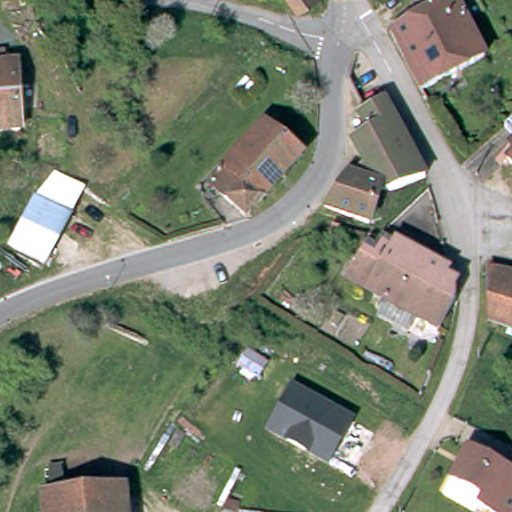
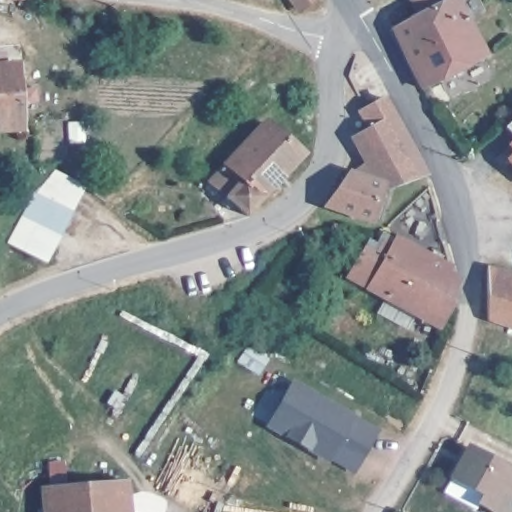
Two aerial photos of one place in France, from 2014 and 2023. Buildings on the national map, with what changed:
unchanged [(292,0),(319,0),(303,14),(292,0)]
unchanged [(417,87),(416,85),(420,82),(390,24),(417,10),(411,0),(435,0),(452,0),(468,29),(480,52),(417,87)]
unchanged [(4,49),(5,62),(12,62),(14,127),(0,128),(0,49),(4,49)]
unchanged [(380,174),(350,163),(360,157),(347,131),(360,125),(354,107),(380,95),(419,172),(390,177),(380,174)]
unchanged [(512,114),(512,137),(501,128),(512,114)]
unchanged [(297,147),(247,211),(212,182),(260,119),(297,147)]
unchanged [(512,138),(512,149),(507,145),(512,138)]
unchanged [(512,156),(512,162),(509,160),(512,156)]
unchanged [(382,211),(338,203),(350,163),(380,174),(382,211)]
unchanged [(4,252),(32,204),(70,224),(42,272),(4,252)]
unchanged [(403,314),(393,327),(366,309),(375,296),(345,277),(359,252),(365,256),(374,243),(382,248),(388,241),(437,271),(432,277),(445,285),(445,301),(427,329),(403,314)]
unchanged [(512,272),(512,330),(487,322),(486,267),(512,272)]
unchanged [(356,415),(327,462),(265,427),(291,380),(356,415)]
new [(377,432),(355,475),(329,461),(354,418),(377,432)]
unchanged [(470,502),(475,494),(443,476),(460,446),(512,475),(512,496),(503,512),(487,512),(470,502)]
unchanged [(43,483),(123,475),(126,512),(46,512),(43,483)]

